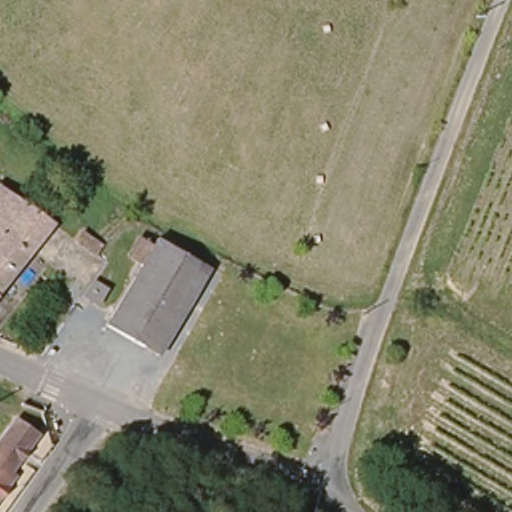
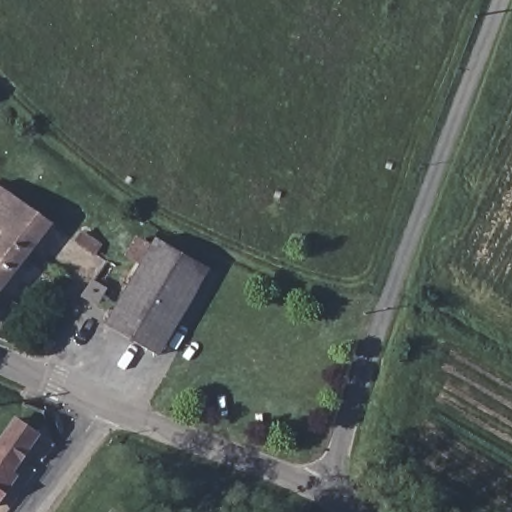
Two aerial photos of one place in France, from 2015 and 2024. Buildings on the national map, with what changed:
unchanged [(53,225),(0,296),(0,203),(8,193),(53,225)]
unchanged [(79,236),(85,225),(111,243),(105,253),(79,236)]
unchanged [(208,282),(157,359),(107,329),(144,275),(131,267),(142,251),(155,259),(161,251),(208,282)]
unchanged [(105,292),(96,307),(82,299),(92,284),(105,292)]
unchanged [(35,435),(9,475),(12,477),(6,488),(0,497),(0,436),(10,419),(35,435)]

